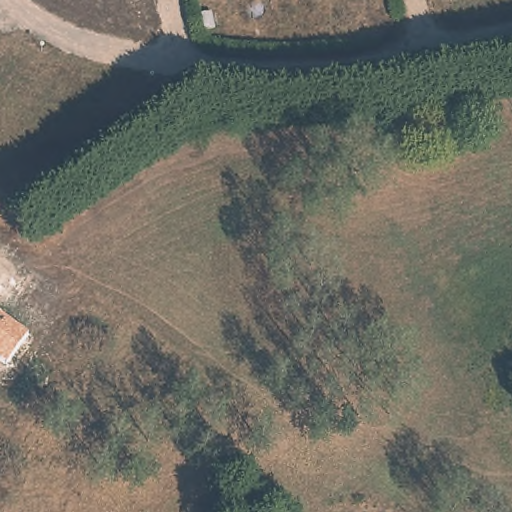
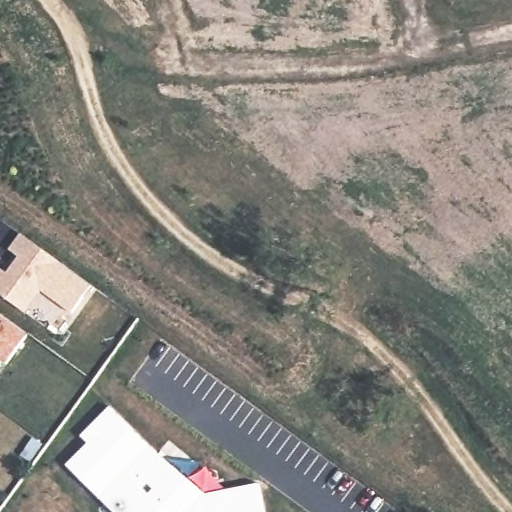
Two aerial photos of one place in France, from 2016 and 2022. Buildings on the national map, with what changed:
unchanged [(93,285),(71,312),(40,290),(24,312),(0,294),(0,271),(2,268),(8,271),(16,258),(8,250),(21,232),(93,285)]
unchanged [(28,333),(7,364),(0,360),(0,314),(28,333)]
new [(67,464),(89,442),(81,434),(110,405),(207,494),(260,482),(266,512),(115,512),(67,464)]

